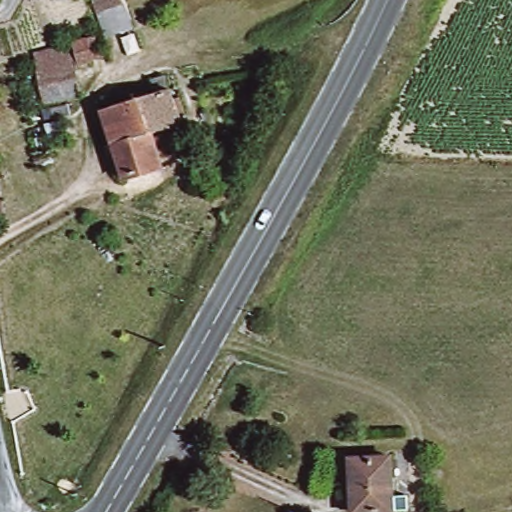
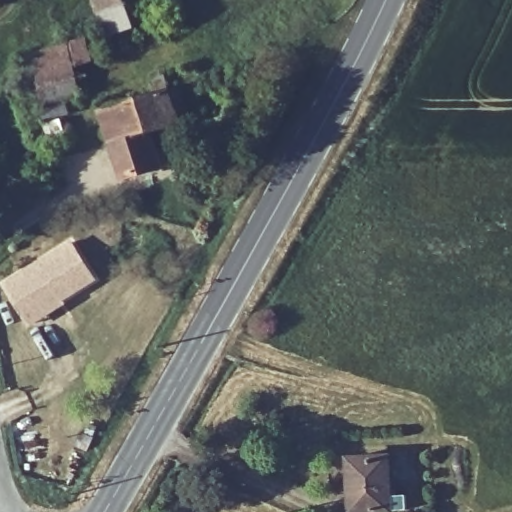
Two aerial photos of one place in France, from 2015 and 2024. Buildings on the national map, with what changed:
unchanged [(95,0),(124,0),(131,22),(105,31),(95,0)]
unchanged [(78,91),(43,99),(32,50),(85,36),(98,32),(104,51),(90,55),(71,60),(78,91)]
unchanged [(183,117),(151,128),(113,140),(102,105),(154,87),(150,75),(166,70),(170,82),(173,91),(182,89),(188,105),(180,108),(183,117)]
unchanged [(70,122),(57,125),(54,110),(67,107),(70,122)]
unchanged [(163,162),(125,174),(113,140),(151,128),(163,162)]
new [(31,326),(23,311),(5,285),(72,244),(95,281),(63,301),(65,305),(31,326)]
unchanged [(352,511),(347,455),(387,453),(390,490),(408,489),(409,507),(352,511)]

